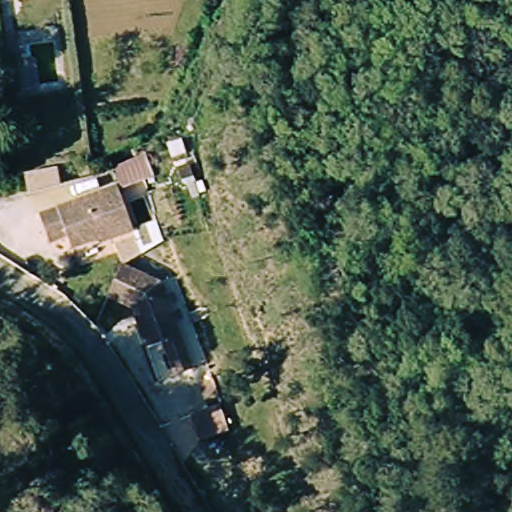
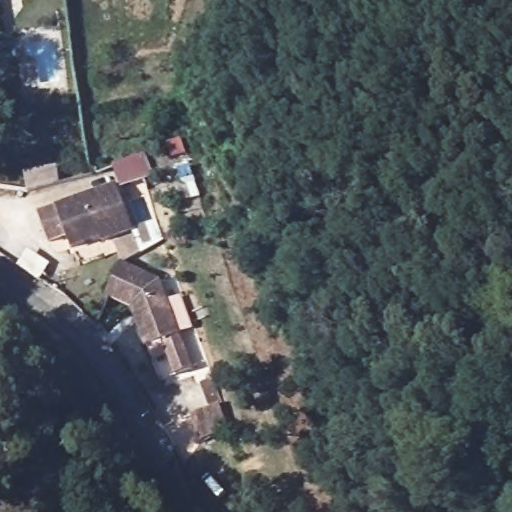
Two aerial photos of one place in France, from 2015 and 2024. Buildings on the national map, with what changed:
unchanged [(120,182),(136,227),(104,238),(103,234),(74,244),(69,232),(51,238),(41,210),(120,182)]
unchanged [(160,279),(189,366),(173,371),(162,338),(145,344),(132,303),(107,292),(122,260),(160,279)]
unchanged [(187,417),(216,408),(224,433),(195,442),(187,417)]

